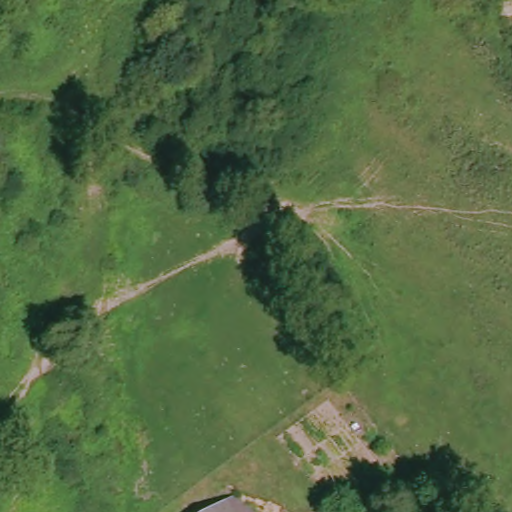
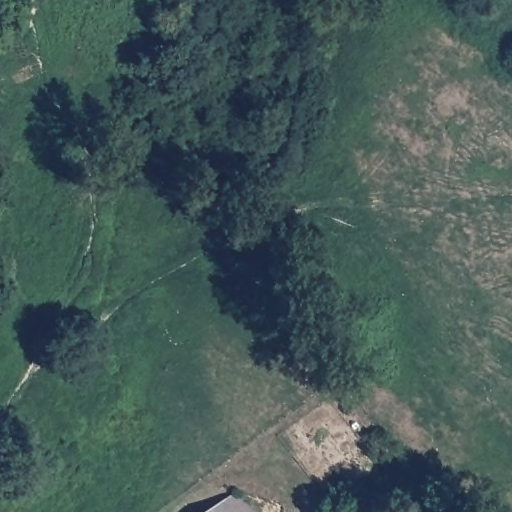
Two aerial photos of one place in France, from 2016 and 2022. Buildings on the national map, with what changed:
unchanged [(224,496),(256,509),(258,512),(203,512),(224,496)]

